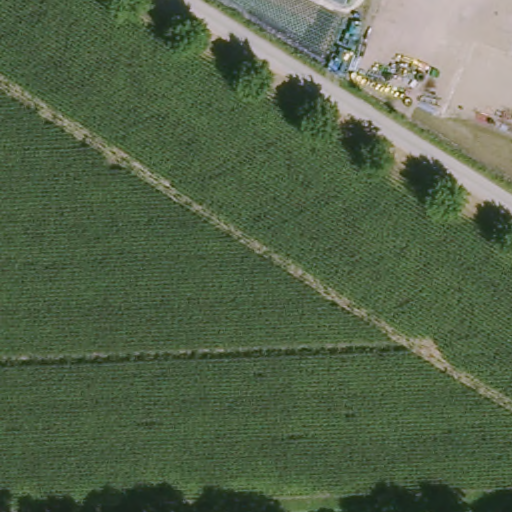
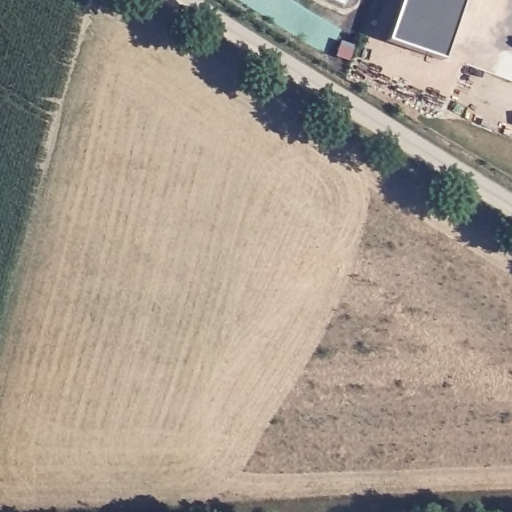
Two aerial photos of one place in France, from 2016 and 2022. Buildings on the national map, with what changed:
unchanged [(329,0),(352,0),(347,9),(329,0)]
new [(468,0),(448,58),(392,38),(405,0),(468,0)]

